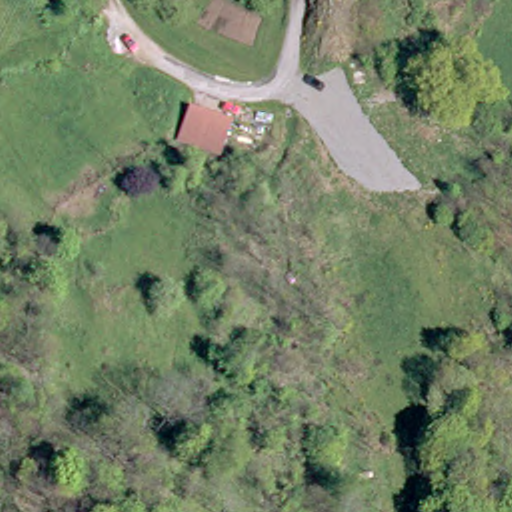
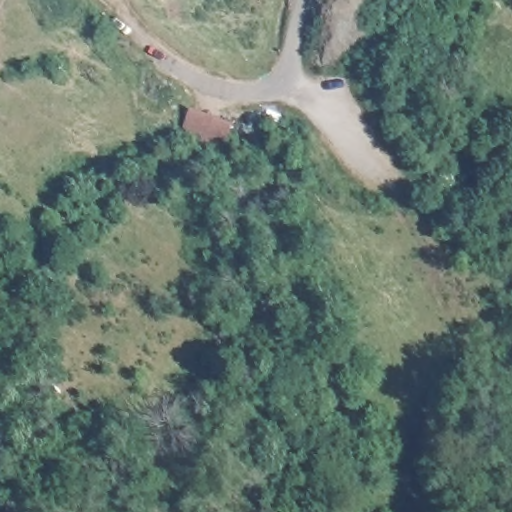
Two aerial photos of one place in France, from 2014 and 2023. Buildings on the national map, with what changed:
unchanged [(215,155),(175,140),(187,111),(226,126),(215,155)]

